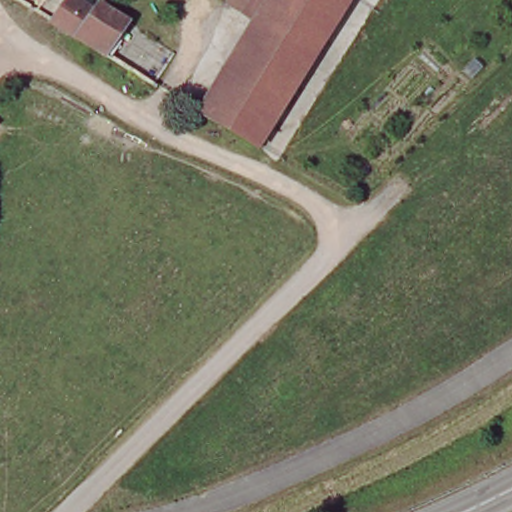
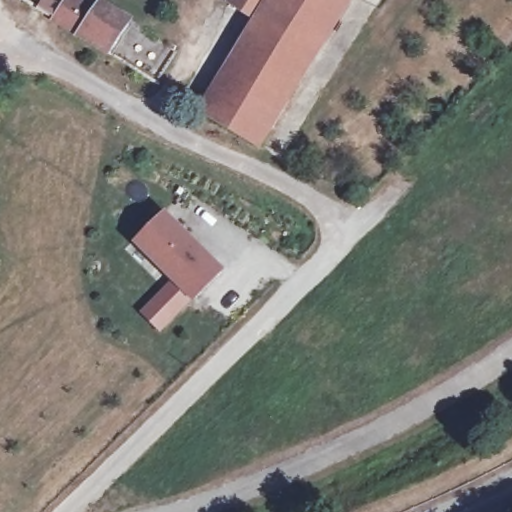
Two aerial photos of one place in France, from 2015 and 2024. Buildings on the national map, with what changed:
unchanged [(84,0),(127,26),(110,54),(62,24),(56,20),(68,0),(84,0)]
unchanged [(202,106),(257,15),(233,0),(349,0),(263,143),(202,106)]
new [(170,279),(133,242),(166,210),(226,270),(194,303),(191,300),(160,333),(139,312),(170,279)]

